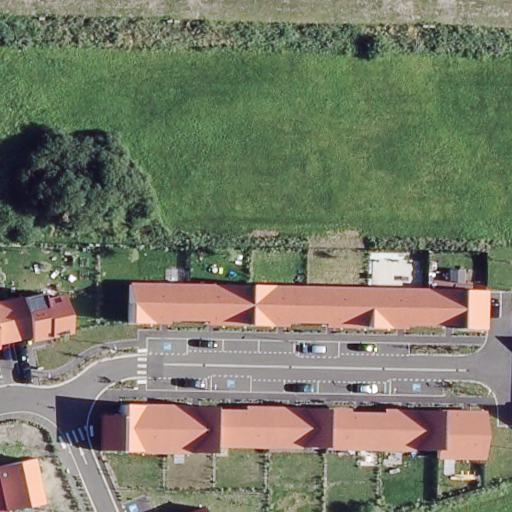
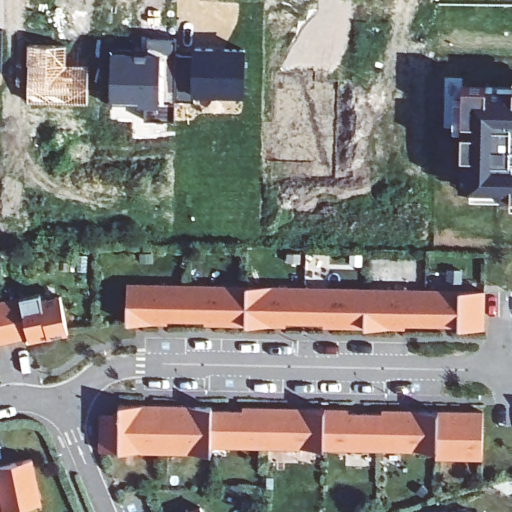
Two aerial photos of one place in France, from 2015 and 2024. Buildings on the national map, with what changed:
new [(1,69),(0,69),(0,28),(2,28),(1,69)]
new [(176,53),(193,54),(194,46),(247,46),(245,96),(194,95),(194,100),(175,99),(174,120),(145,119),(146,105),(138,105),(138,101),(111,101),(110,50),(148,51),(147,36),(175,37),(176,53)]
new [(65,64),(85,63),(89,70),(87,103),(28,102),(27,44),(66,45),(65,64)]
new [(510,198),(471,196),(471,187),(460,186),(460,156),(462,85),(512,86),(512,206),(510,205),(510,198)]
unchanged [(485,291),(484,330),(128,324),(128,283),(485,291)]
unchanged [(40,292),(42,299),(62,295),(70,334),(28,343),(27,337),(0,342),(0,301),(40,292)]
unchanged [(120,415),(120,405),(483,411),(482,459),(435,458),(435,451),(213,448),(212,455),(99,452),(98,416),(120,415)]
unchanged [(33,457),(42,504),(5,511),(5,512),(0,512),(0,464),(33,457)]
unchanged [(185,512),(202,505),(204,512),(185,512)]

